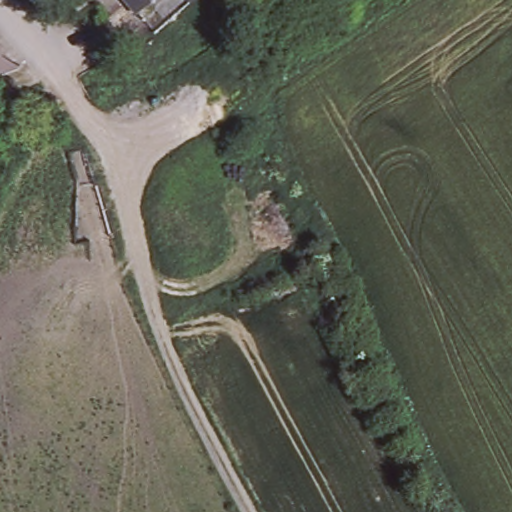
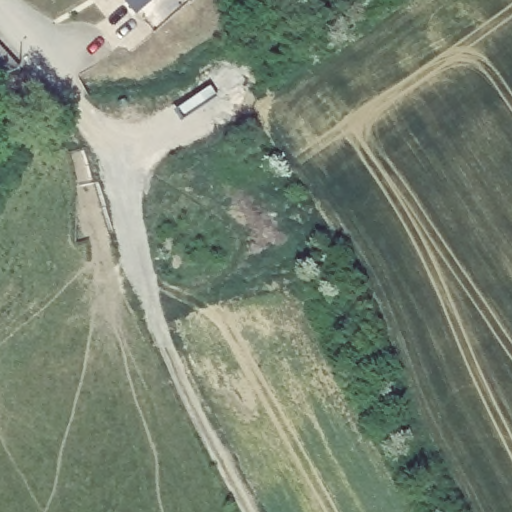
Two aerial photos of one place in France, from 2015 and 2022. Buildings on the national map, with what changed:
unchanged [(126,0),(157,0),(137,15),(126,0)]
unchanged [(197,0),(192,4),(188,0),(197,0)]
unchanged [(18,65),(0,72),(0,47),(18,65)]

